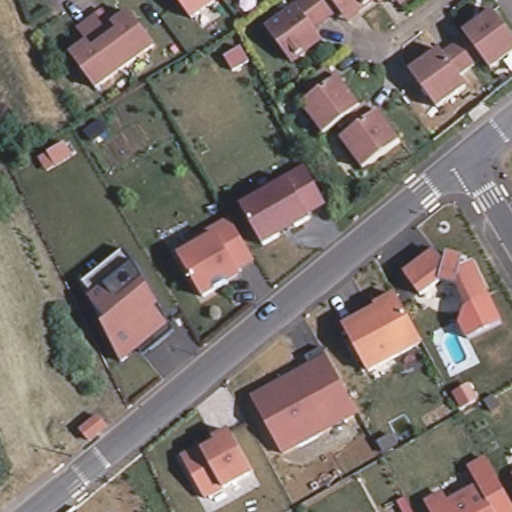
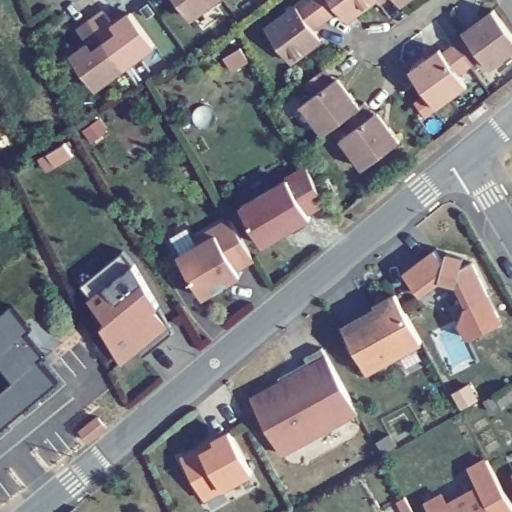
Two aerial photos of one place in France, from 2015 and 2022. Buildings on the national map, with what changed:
unchanged [(223,1),(194,24),(177,0),(222,0),(223,1)]
unchanged [(223,1),(222,0),(225,0),(223,1)]
unchanged [(309,0),(372,0),(374,3),(374,4),(344,25),(335,14),(323,24),(307,1),(309,0)]
unchanged [(377,7),(376,7),(374,4),(374,3),(372,0),(386,0),(377,7)]
unchanged [(397,10),(390,0),(410,0),(397,10)]
unchanged [(323,24),(310,32),(319,44),(288,66),(264,34),(307,1),(323,24)]
unchanged [(105,12),(115,26),(132,14),(156,46),(127,68),(92,22),(105,12)]
unchanged [(465,37),(495,15),(512,38),(512,60),(492,74),(485,63),(472,71),(457,50),(468,41),(465,37)]
unchanged [(127,68),(97,90),(73,57),(90,45),(80,31),(92,22),(127,68)]
unchanged [(472,71),(461,80),(469,91),(439,112),(417,82),(412,77),(442,54),(445,58),(457,50),(472,71)]
unchanged [(304,110),(315,101),(305,89),(327,73),(337,85),(340,81),(362,110),(362,111),(345,124),(325,139),(304,110)]
unchanged [(362,111),(362,110),(367,107),(368,109),(375,119),(380,116),(402,146),(365,174),(343,144),(354,135),(345,124),(362,111)]
unchanged [(256,252),(233,213),(280,186),(279,184),(299,172),(318,210),(301,220),(304,225),(288,233),(271,244),(256,252)]
unchanged [(222,290),(205,299),(182,258),(201,246),(197,241),(232,220),(256,261),(240,272),(242,277),(222,290)]
unchanged [(437,246),(447,258),(449,250),(465,254),(464,263),(475,257),(490,291),(470,301),(460,280),(442,275),(422,290),(406,269),(437,246)]
unchanged [(140,351),(124,364),(105,327),(110,323),(92,301),(95,299),(85,285),(108,266),(126,252),(137,265),(177,333),(153,353),(150,349),(142,355),(140,351)]
unchanged [(378,309),(377,306),(397,295),(424,342),(370,372),(345,327),(373,312),(378,309)]
new [(15,305),(67,381),(0,434),(0,317),(15,305)]
unchanged [(283,383),(312,367),(307,358),(324,348),(360,413),(284,455),(254,399),(283,383)]
unchanged [(100,418),(109,428),(92,443),(84,433),(100,418)]
unchanged [(255,473),(238,482),(207,500),(184,458),(204,448),(217,440),(232,432),(255,473)]
unchanged [(445,495),(450,505),(481,488),(471,470),(489,460),(512,502),(512,512),(432,512),(427,505),(445,495)]

